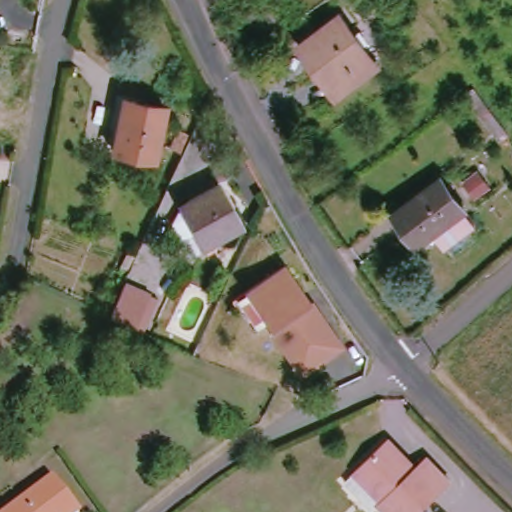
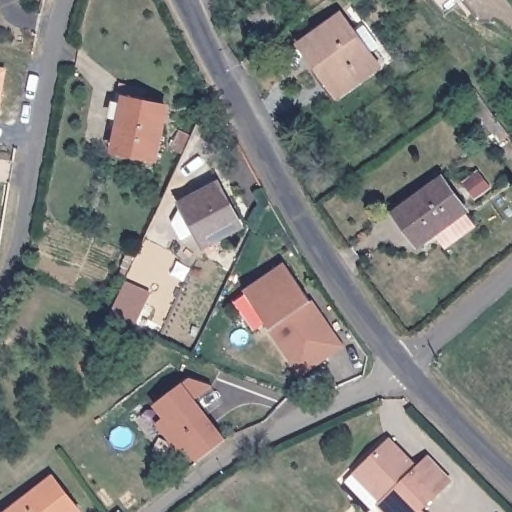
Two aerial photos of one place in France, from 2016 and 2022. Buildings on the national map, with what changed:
unchanged [(245,21),(272,1),(292,28),(265,48),(245,21)]
unchanged [(370,71),(328,97),(295,47),(334,19),(370,71)]
unchanged [(512,135),(512,140),(505,144),(470,96),(479,89),(512,135)]
unchanged [(146,161),(105,151),(115,102),(157,111),(146,161)]
unchanged [(381,207),(436,170),(463,209),(457,212),(466,227),(437,246),(430,235),(419,249),(381,207)]
unchanged [(173,214),(178,204),(212,185),(235,226),(201,246),(190,225),(182,230),(173,214)]
unchanged [(348,343),(308,372),(273,322),(261,332),(238,300),(290,262),(348,343)]
unchanged [(142,319),(137,329),(105,313),(120,281),(145,292),(152,297),(142,319)]
new [(195,399),(225,438),(197,462),(185,446),(177,452),(157,424),(163,417),(153,406),(190,377),(212,386),(195,399)]
unchanged [(373,503),(367,509),(338,480),(382,438),(409,467),(420,457),(443,481),(416,509),(419,512),(382,512),(373,503)]
unchanged [(48,476),(77,509),(73,512),(3,512),(48,476)]

